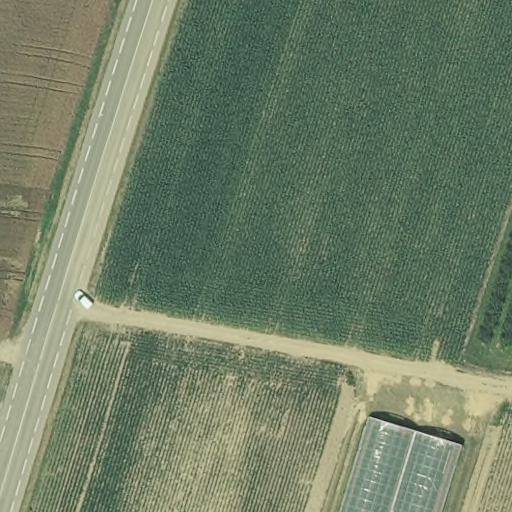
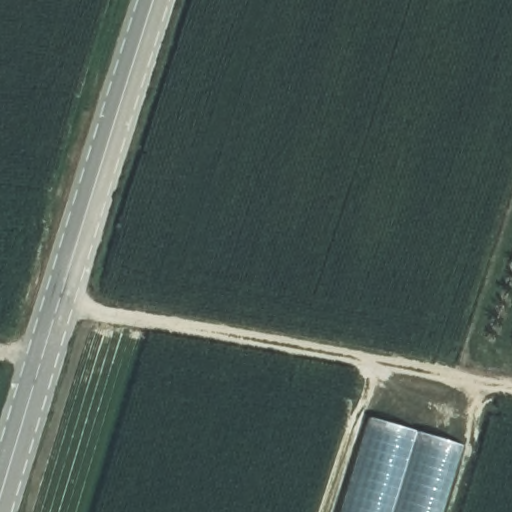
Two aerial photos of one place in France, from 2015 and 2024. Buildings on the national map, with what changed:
unchanged [(342,512),(372,416),(466,443),(444,512),(342,512)]

